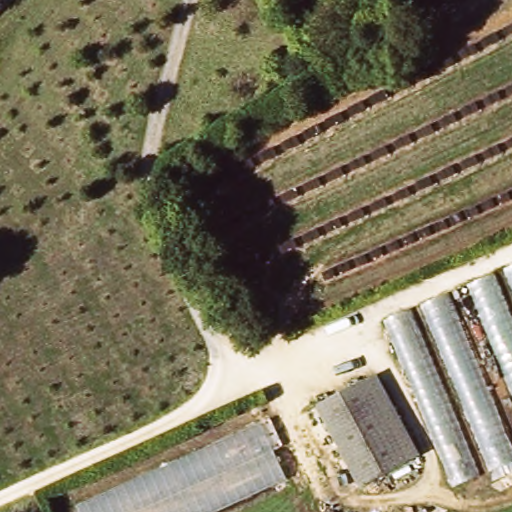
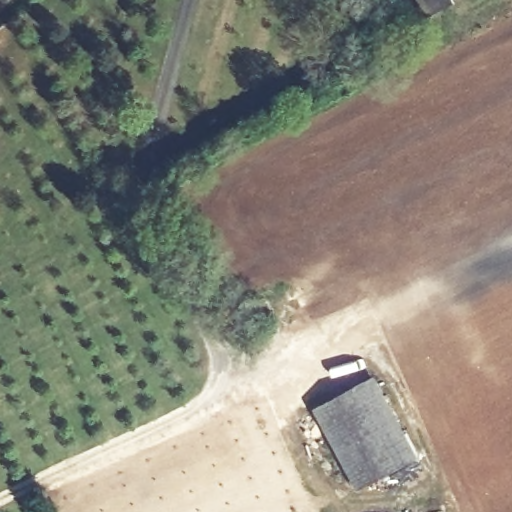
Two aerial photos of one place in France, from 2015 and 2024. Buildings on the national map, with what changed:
new [(422,4),(420,0),(453,0),(455,2),(433,13),(427,1),(422,4)]
demolished [(512,464),(455,489),(384,324),(512,269),(512,464)]
unchanged [(320,404),(367,380),(392,432),(408,463),(362,486),(320,404)]
new [(272,450),(140,512),(70,512),(70,511),(261,423),(272,450)]

